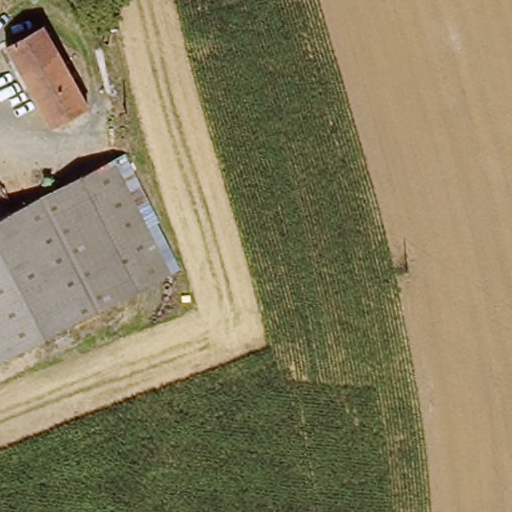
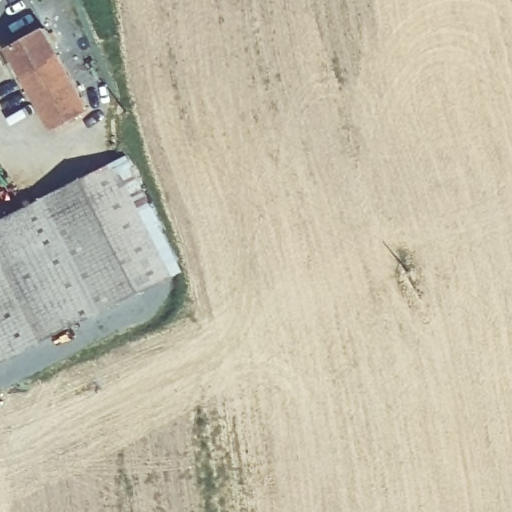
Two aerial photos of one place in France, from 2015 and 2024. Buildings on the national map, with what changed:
unchanged [(50,131),(9,48),(42,30),(83,112),(50,131)]
unchanged [(0,225),(110,170),(166,280),(0,363),(0,225)]

